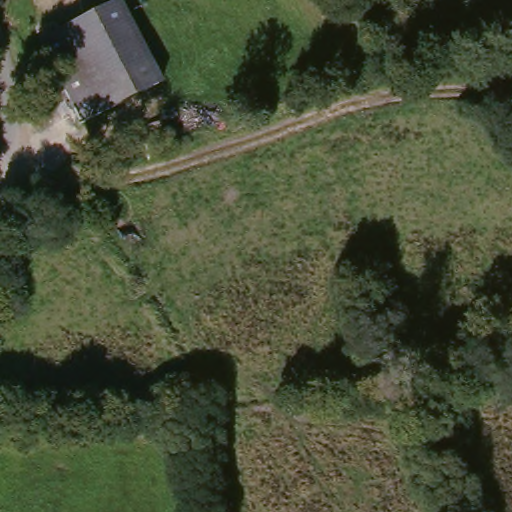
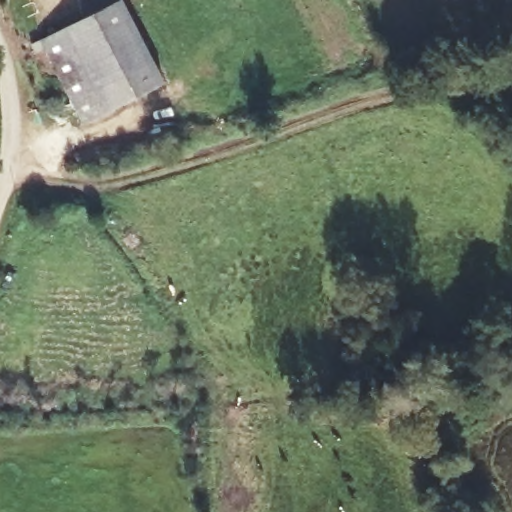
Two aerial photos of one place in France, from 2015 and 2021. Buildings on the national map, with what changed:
unchanged [(130,2),(164,87),(82,117),(52,32),(122,6),(130,2)]

